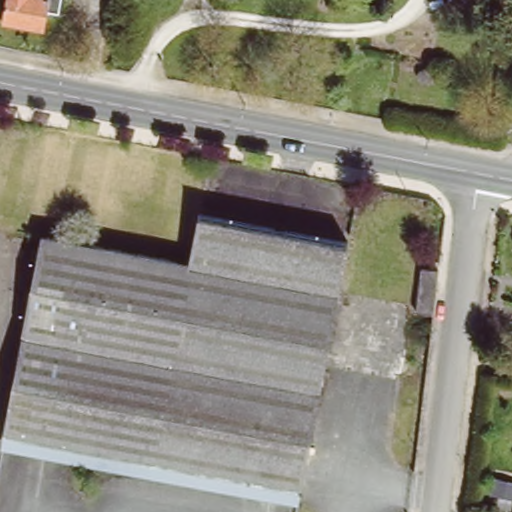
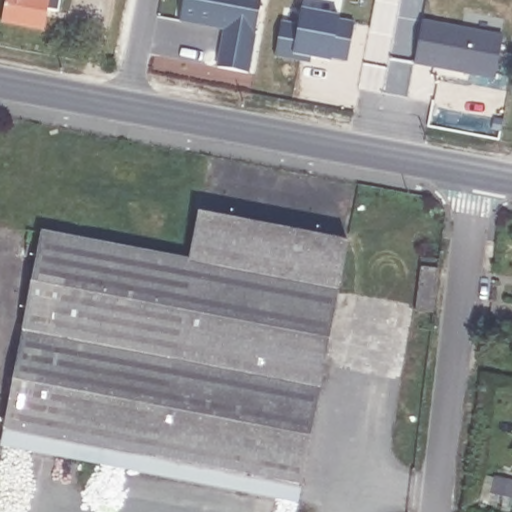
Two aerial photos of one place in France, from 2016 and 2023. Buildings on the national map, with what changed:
unchanged [(70,12),(53,9),(50,29),(7,21),(11,0),(72,0),(70,12)]
new [(223,32),(180,23),(184,0),(263,0),(251,74),(218,68),(223,32)]
new [(282,22),(298,23),(301,9),(340,17),(339,19),(355,22),(349,64),(331,60),(331,62),(313,59),(311,64),(275,58),(282,22)]
new [(422,19),(504,35),(496,81),(415,65),(422,19)]
unchanged [(46,234),(193,263),(203,212),(354,241),(306,488),(9,431),(46,234)]
unchanged [(434,305),(416,303),(422,257),(439,260),(434,305)]

